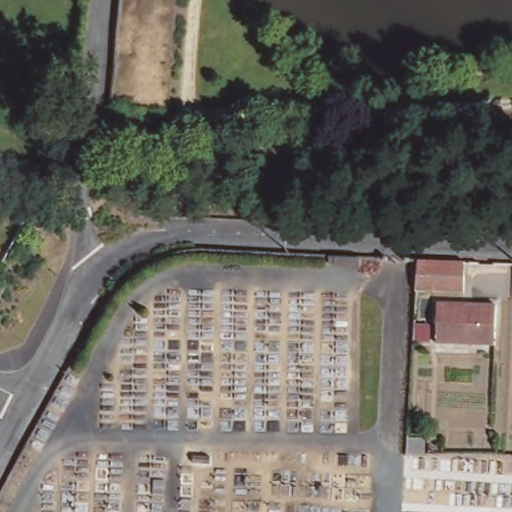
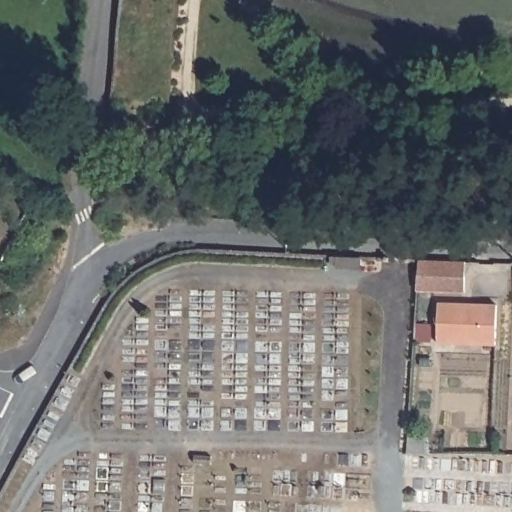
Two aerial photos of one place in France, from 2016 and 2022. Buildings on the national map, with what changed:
unchanged [(465,262),(464,292),(417,290),(420,260),(465,262)]
unchanged [(495,306),(493,346),(435,343),(437,303),(495,306)]

